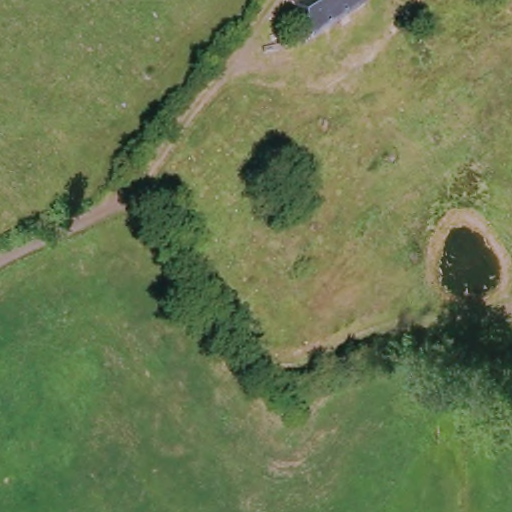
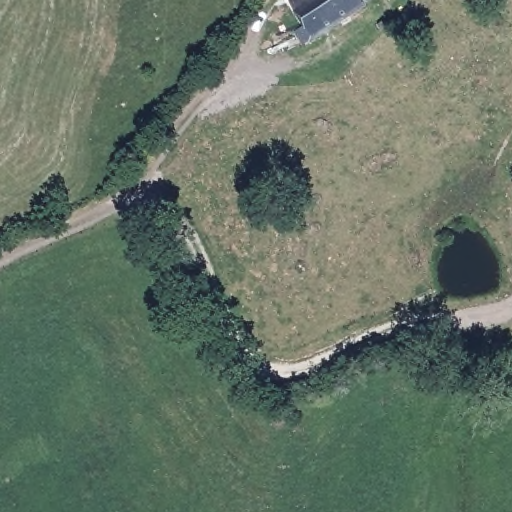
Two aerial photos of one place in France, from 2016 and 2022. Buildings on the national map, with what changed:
unchanged [(295,32),(306,25),(291,4),(297,0),(360,0),(364,6),(304,47),(295,32)]

